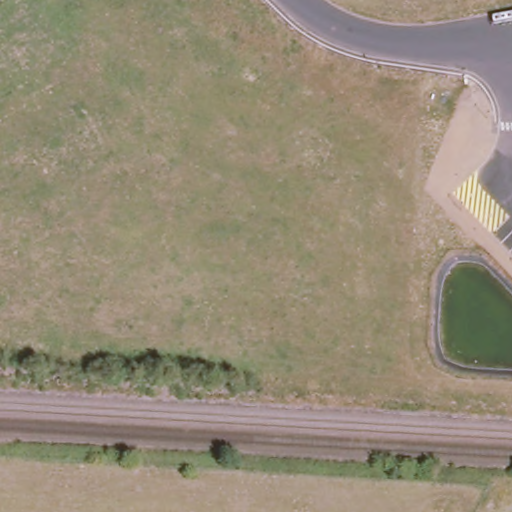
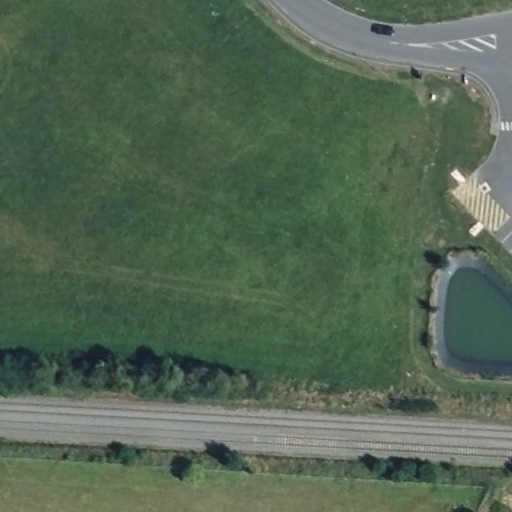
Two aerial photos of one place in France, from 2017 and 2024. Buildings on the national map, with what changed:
[]

